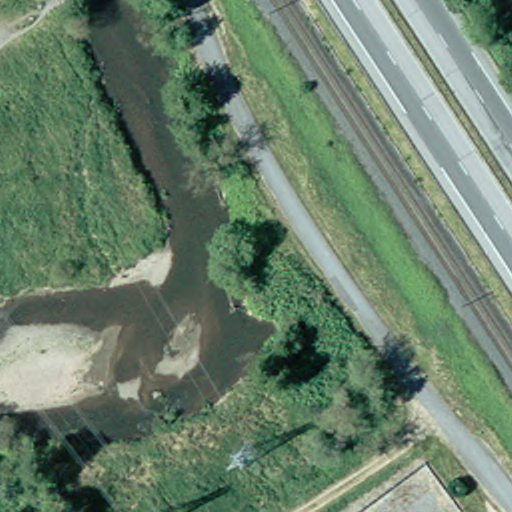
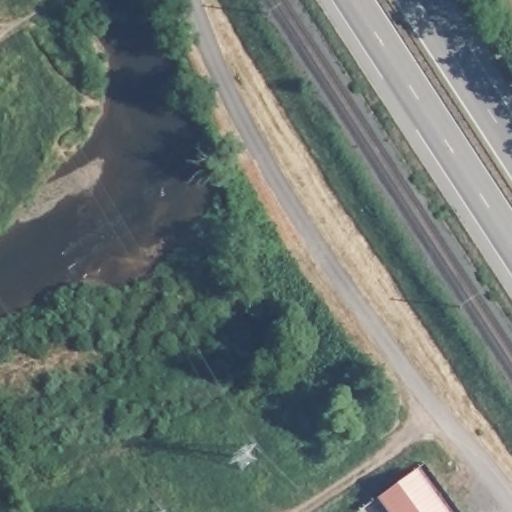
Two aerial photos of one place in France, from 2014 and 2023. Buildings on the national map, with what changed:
new [(419,468),(451,512),(389,512),(380,500),(419,468)]

